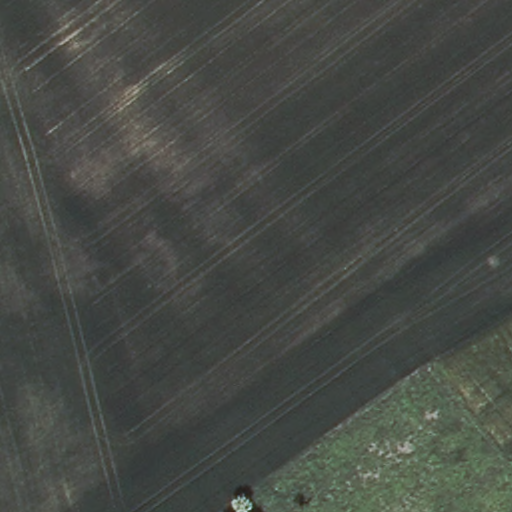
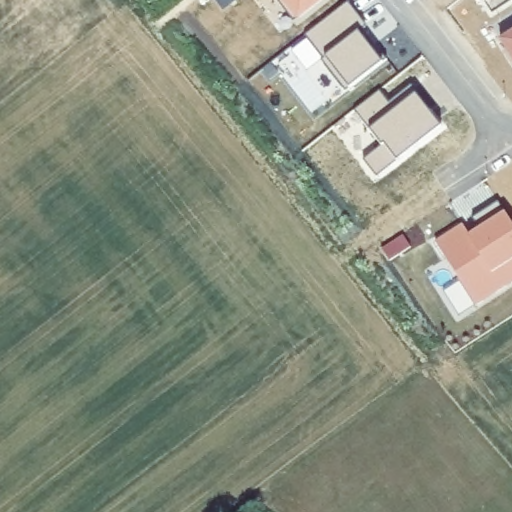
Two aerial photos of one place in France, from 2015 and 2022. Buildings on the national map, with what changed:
new [(289,7),(284,10),(275,0),(330,0),(301,22),(289,7)]
new [(348,1),(367,26),(359,32),(381,60),(346,90),(321,59),(324,57),(305,35),(348,1)]
new [(503,42),(512,36),(512,58),(503,42)]
new [(382,95),(391,106),(414,89),(434,114),(431,116),(438,125),(439,124),(444,131),(379,182),(365,164),(384,150),(356,115),(382,95)]
new [(465,229),(472,239),(481,232),(474,222),(501,206),(512,225),(512,288),(478,310),(438,246),(465,229)]

